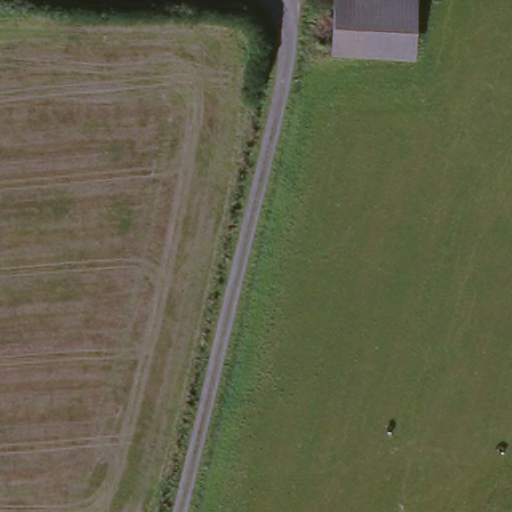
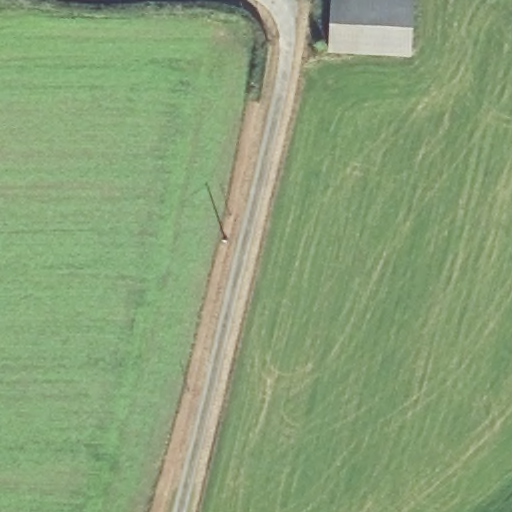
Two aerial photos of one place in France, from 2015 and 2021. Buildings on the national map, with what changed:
unchanged [(321,55),(324,0),(421,0),(418,58),(321,55)]

